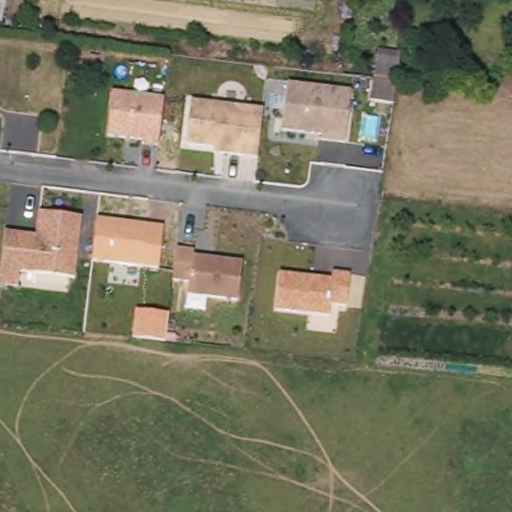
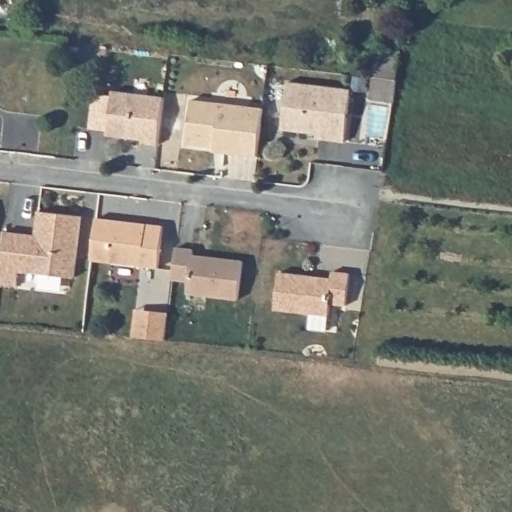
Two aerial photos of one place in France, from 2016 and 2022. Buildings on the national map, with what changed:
unchanged [(400,102),(374,99),(378,73),(380,50),(406,54),(403,75),(401,93),(400,102)]
unchanged [(352,92),(348,147),(317,146),(318,140),(281,136),(284,82),(352,92)]
unchanged [(164,100),(159,149),(105,142),(110,92),(164,100)]
unchanged [(264,108),(260,162),(213,156),(213,149),(186,144),(189,98),(264,108)]
unchanged [(38,213),(82,219),(75,283),(19,275),(17,292),(0,290),(0,278),(2,232),(36,235),(38,213)]
unchanged [(164,229),(160,268),(92,260),(95,220),(164,229)]
unchanged [(197,250),(195,257),(244,263),(239,303),(185,297),(185,282),(174,281),(178,247),(197,250)]
unchanged [(331,279),(332,271),(355,275),(352,312),(330,310),(329,320),(275,313),(278,271),(331,279)]
unchanged [(171,313),(169,342),(132,338),(135,309),(171,313)]

